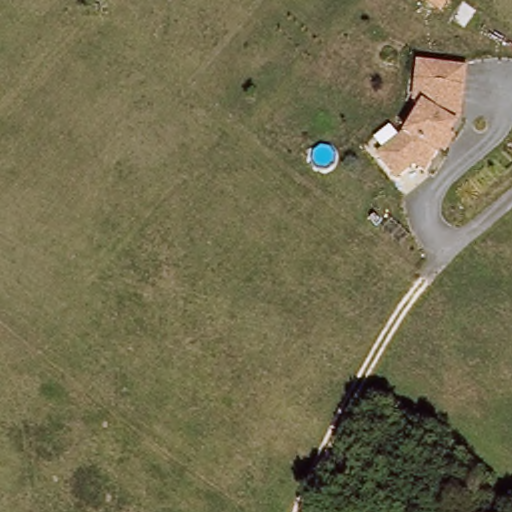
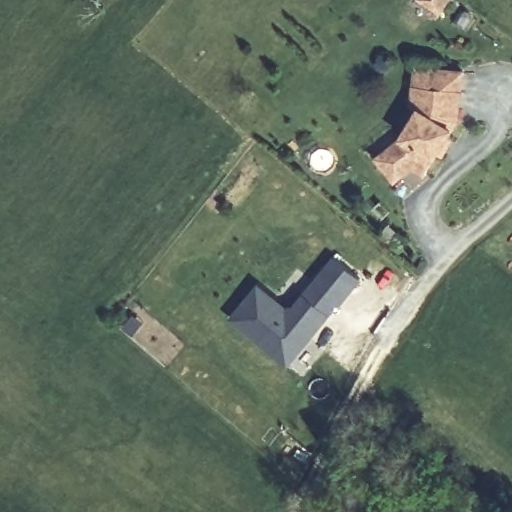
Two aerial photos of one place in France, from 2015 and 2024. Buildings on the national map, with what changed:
new [(438,13),(418,0),(447,0),(438,13)]
unchanged [(464,73),(455,140),(421,177),(412,170),(395,185),(373,162),(397,141),(402,142),(420,115),(422,111),(411,107),(413,67),(464,73)]
new [(230,320),(255,286),(283,308),(291,307),(302,293),(311,280),(331,255),(357,275),(337,301),(336,300),(326,312),(315,326),(307,337),(287,363),(230,320)]

